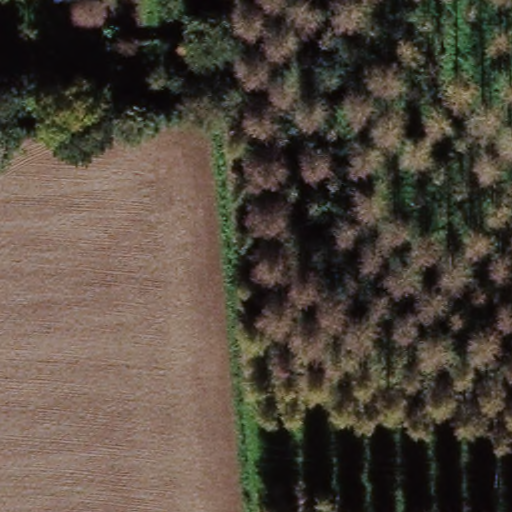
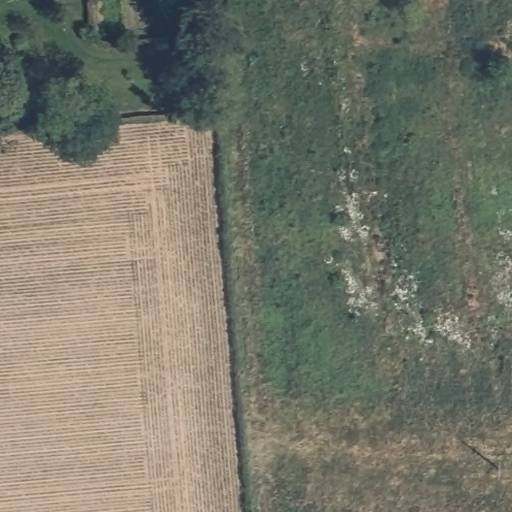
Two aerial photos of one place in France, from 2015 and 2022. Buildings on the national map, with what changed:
unchanged [(55,5),(54,0),(81,0),(82,2),(55,5)]

